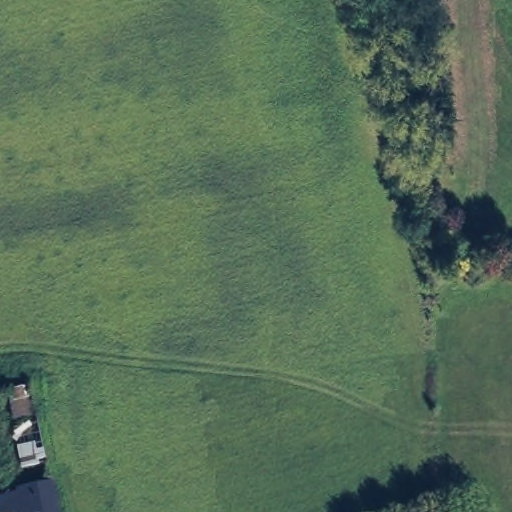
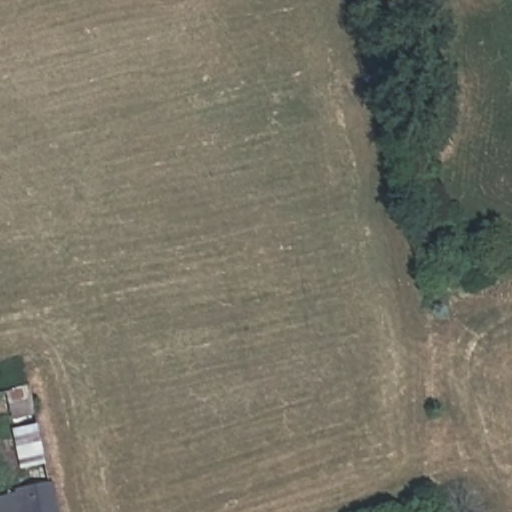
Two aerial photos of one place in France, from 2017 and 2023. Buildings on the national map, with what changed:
unchanged [(38,422),(16,427),(9,390),(28,384),(38,422)]
unchanged [(25,482),(23,468),(46,463),(48,475),(57,512),(32,512),(25,482)]
unchanged [(13,494),(18,512),(0,512),(0,499),(13,494)]

